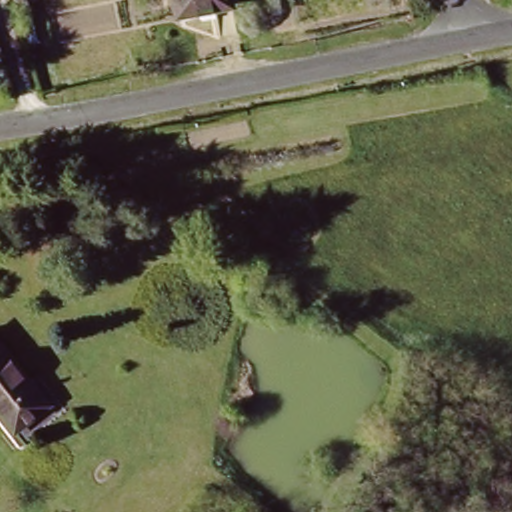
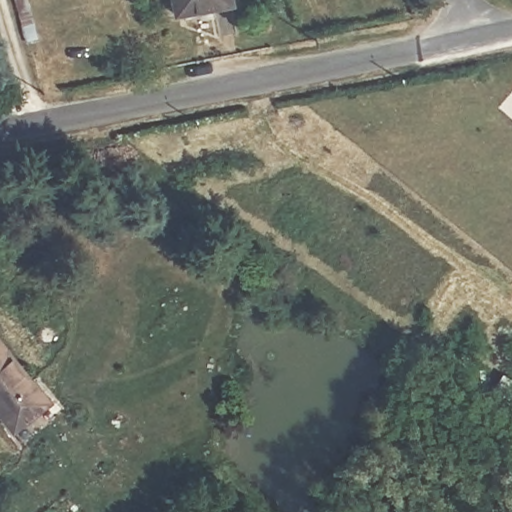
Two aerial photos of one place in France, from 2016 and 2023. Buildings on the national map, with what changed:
unchanged [(180,7),(178,0),(218,0),(180,7)]
unchanged [(0,418),(0,347),(30,384),(25,388),(43,411),(13,435),(0,418)]

